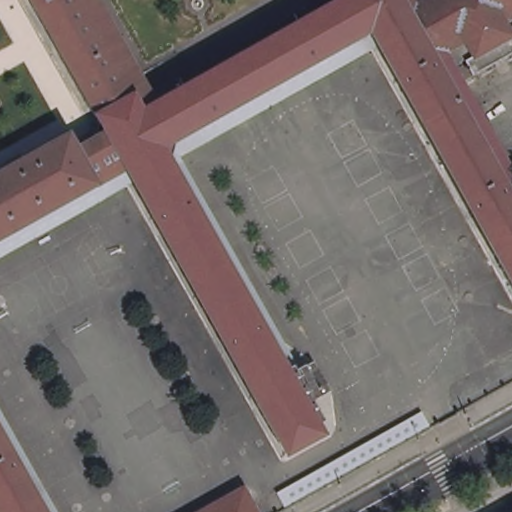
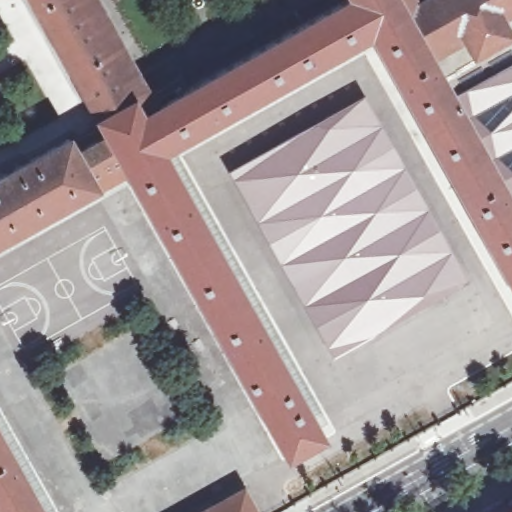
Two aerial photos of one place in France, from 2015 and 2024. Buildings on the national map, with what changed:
unchanged [(168,151),(329,437),(293,457),(132,171),(0,245),(0,180),(74,139),(82,152),(112,136),(36,0),(101,0),(162,108),(353,0),(404,0),(412,14),(425,6),(435,0),(512,0),(512,56),(479,75),(472,64),(460,70),(512,163),(512,277),(376,35),(168,151)]
unchanged [(404,0),(421,0),(425,6),(412,14),(404,0)]
new [(472,64),(479,75),(512,56),(512,163),(460,70),(472,64)]
new [(227,171),(364,95),(467,280),(333,358),(227,171)]
unchanged [(48,512),(1,512),(0,510),(0,426),(48,512)]
unchanged [(246,492),(257,512),(210,512),(246,492)]

